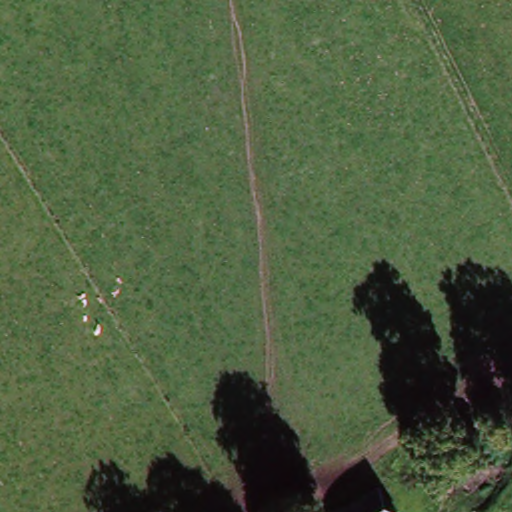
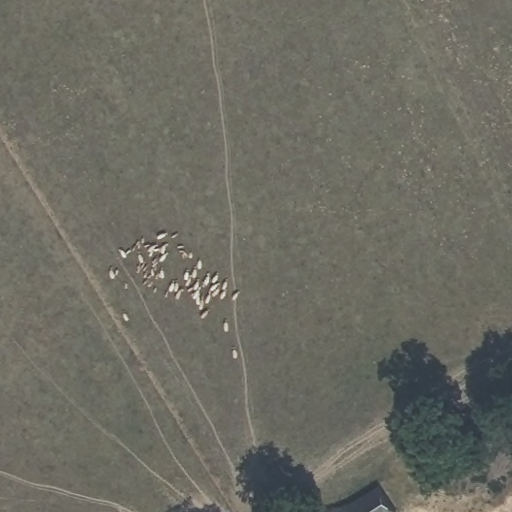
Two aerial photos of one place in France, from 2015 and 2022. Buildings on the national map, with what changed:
unchanged [(389,494),(398,512),(357,512),(389,494)]

